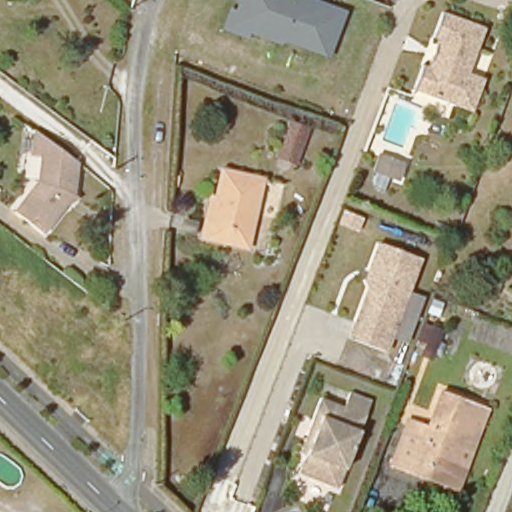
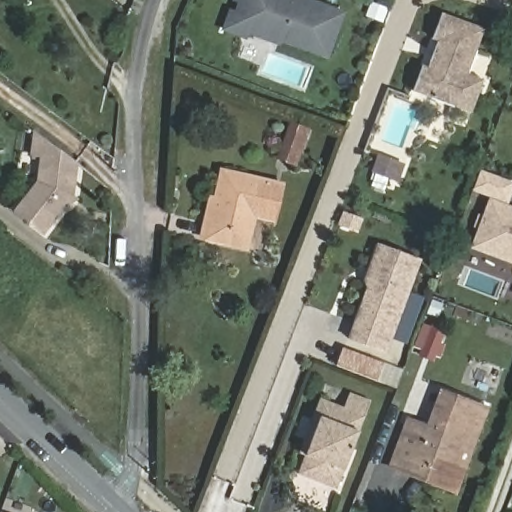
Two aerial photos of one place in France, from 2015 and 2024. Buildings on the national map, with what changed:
unchanged [(283,43),(280,48),(249,35),(246,41),(223,33),(231,10),(236,11),(240,4),(235,1),(236,0),(312,0),(347,12),(331,59),(283,43)]
unchanged [(428,68),(438,40),(433,39),(442,14),(485,29),(468,75),(484,80),(472,113),(413,91),(423,66),(428,68)]
unchanged [(290,122),(311,129),(298,166),(278,159),(290,122)]
unchanged [(75,197),(44,234),(15,212),(37,182),(40,156),(31,155),(35,130),(77,163),(75,197)]
unchanged [(396,182),(370,173),(376,155),(402,164),(396,182)]
unchanged [(222,171),(262,180),(246,248),(202,238),(211,198),(215,199),(222,171)]
new [(512,207),(512,264),(470,248),(490,199),(471,191),(479,171),(512,183),(512,195),(507,205),(512,207)]
unchanged [(380,249),(421,265),(385,358),(350,344),(373,283),(370,275),(380,249)]
new [(344,351),(383,366),(377,382),(337,367),(344,351)]
unchanged [(343,408),(348,394),(370,402),(336,490),(299,474),(313,438),(307,435),(320,399),(343,408)]
unchanged [(408,424),(429,432),(440,397),(466,406),(488,414),(457,497),(436,489),(391,471),(408,424)]

